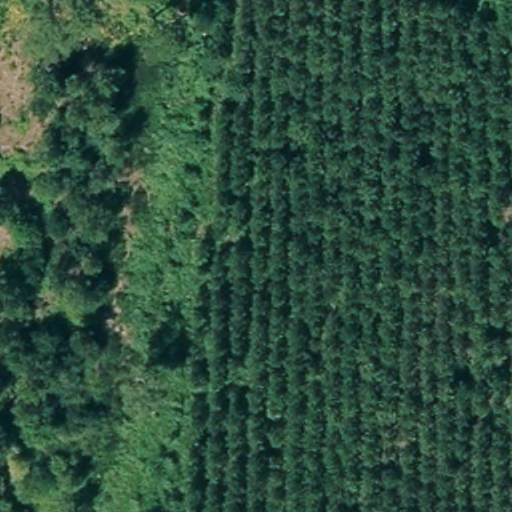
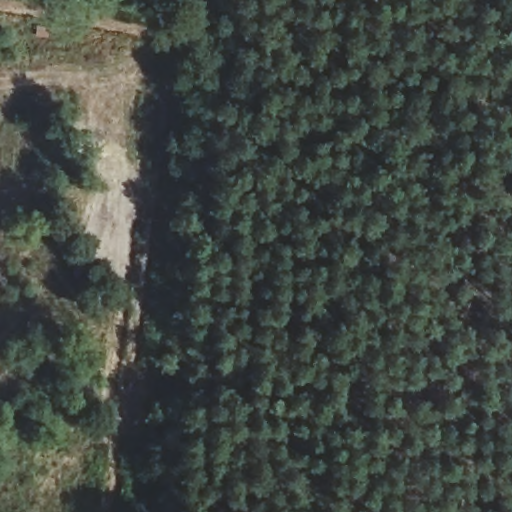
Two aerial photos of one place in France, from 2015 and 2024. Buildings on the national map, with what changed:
[]

